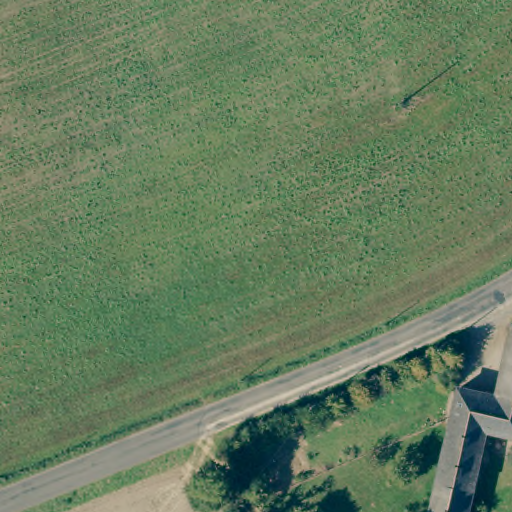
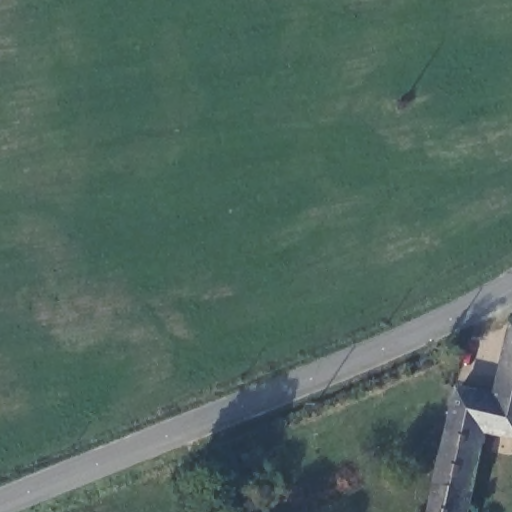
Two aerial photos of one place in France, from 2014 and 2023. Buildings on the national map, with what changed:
unchanged [(453,415),(457,400),(462,387),(496,397),(509,350),(512,339),(512,440),(487,432),(467,512),(428,512),(453,415)]

